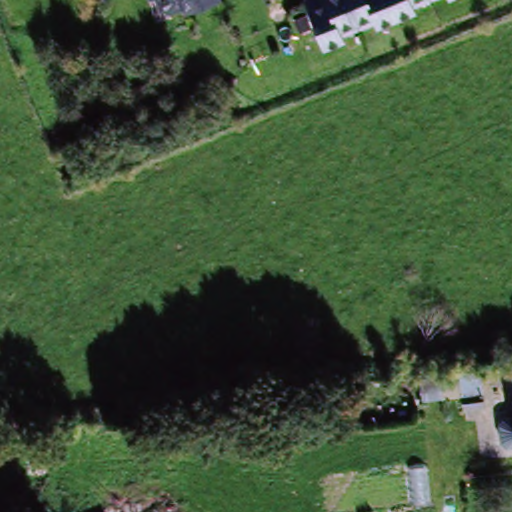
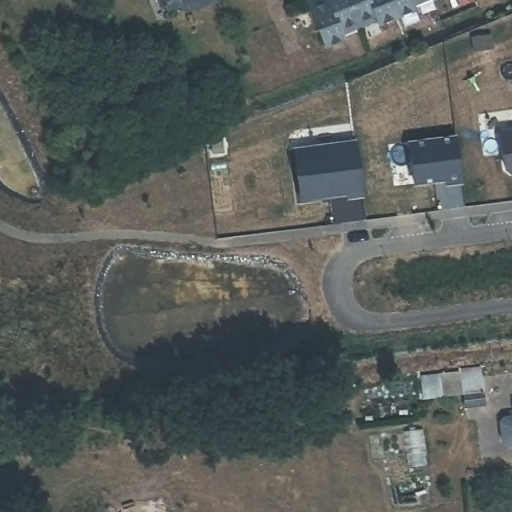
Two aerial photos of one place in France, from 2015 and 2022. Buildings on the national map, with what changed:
unchanged [(171,0),(222,0),(196,12),(191,2),(175,9),(171,0)]
unchanged [(417,10),(379,26),(375,16),(341,32),(345,41),(327,48),(308,5),(319,0),(418,0),(415,1),(417,10)]
new [(512,177),(506,173),(501,138),(512,136),(512,177)]
new [(462,187),(446,189),(445,185),(415,189),(410,147),(457,141),(462,187)]
new [(364,201),(348,203),(347,199),(302,205),(295,155),(357,146),(364,201)]
unchanged [(461,388),(458,368),(478,366),(481,386),(482,403),(462,406),(461,388)]
unchanged [(509,440),(506,421),(511,416),(512,416),(512,442),(509,440)]

